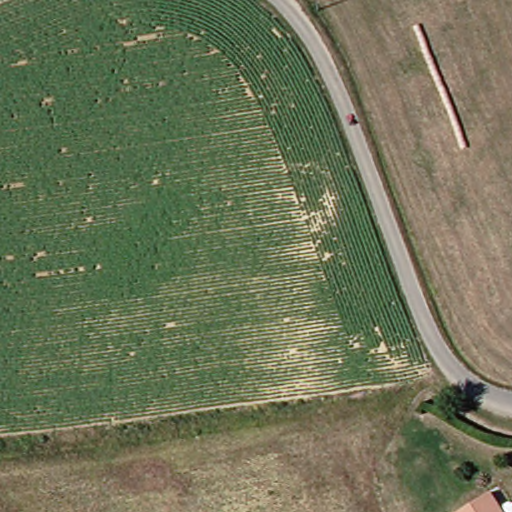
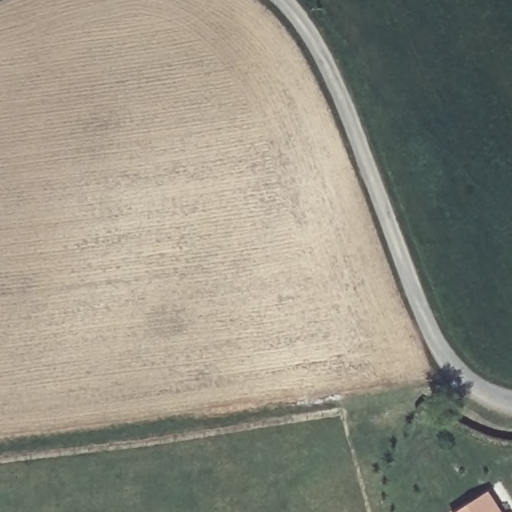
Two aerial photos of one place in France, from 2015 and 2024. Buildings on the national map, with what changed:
unchanged [(496,492),(509,512),(465,512),(496,492)]

